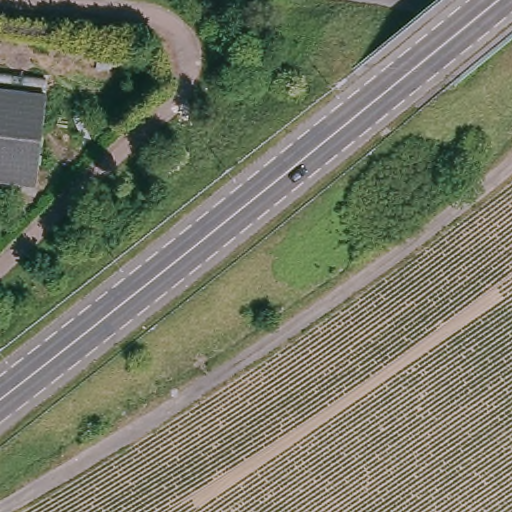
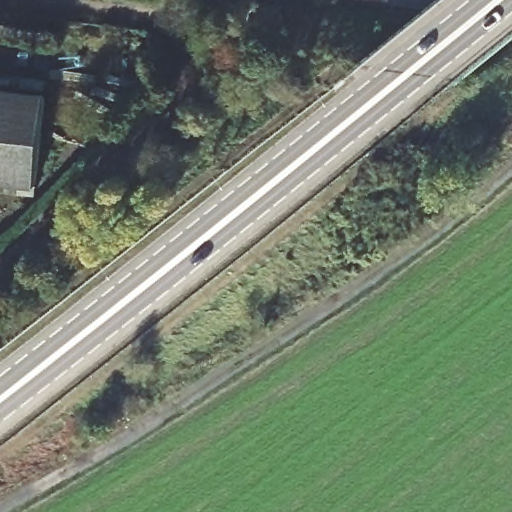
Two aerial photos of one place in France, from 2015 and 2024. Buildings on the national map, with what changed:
unchanged [(0,97),(47,110),(25,195),(0,189),(0,97)]

